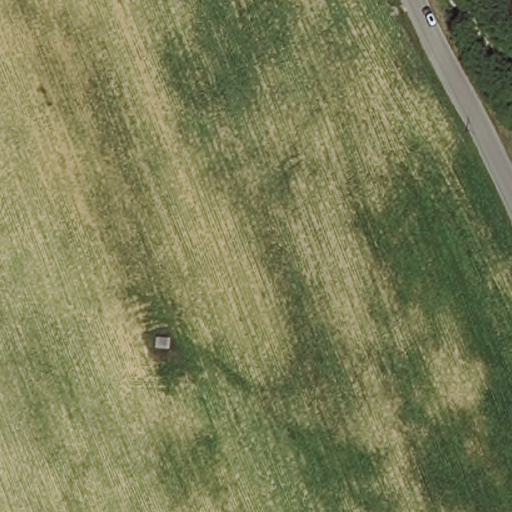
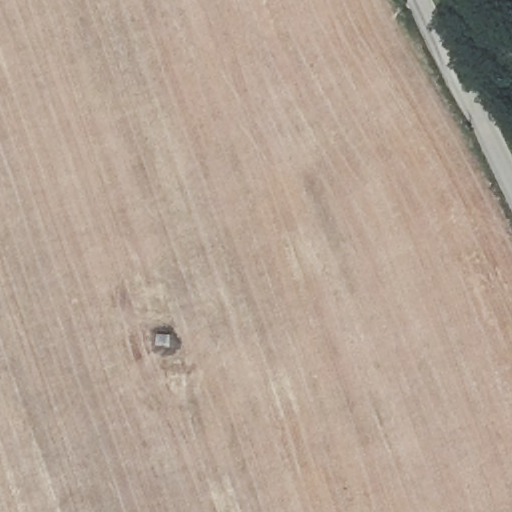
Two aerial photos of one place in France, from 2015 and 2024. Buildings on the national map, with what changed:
unchanged [(174,334),(175,351),(150,351),(149,336),(174,334)]

